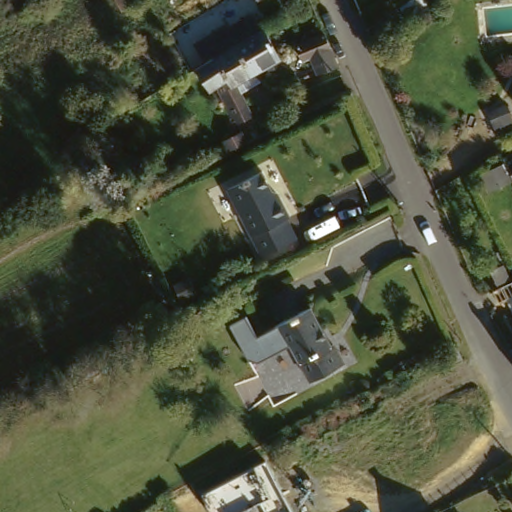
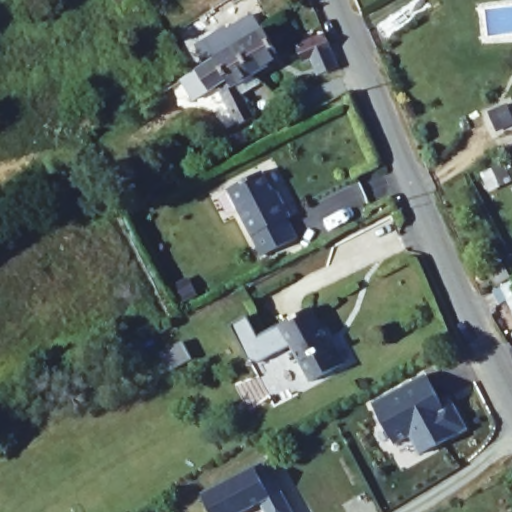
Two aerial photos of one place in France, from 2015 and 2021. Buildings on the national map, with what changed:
unchanged [(113,0),(153,0),(145,5),(144,2),(121,14),(113,0)]
unchanged [(266,78),(245,91),(257,115),(251,118),(243,123),(230,99),(222,86),(213,90),(202,66),(240,43),(231,27),(259,11),(268,27),(270,25),(281,46),(282,47),(286,56),(259,71),(266,77),(266,78)]
unchanged [(324,34),(325,35),(338,67),(316,76),(309,58),(301,61),(296,45),(324,34)]
unchanged [(504,105),(510,119),(494,126),(487,112),(504,105)]
unchanged [(261,137),(255,140),(251,134),(258,131),(261,137)]
unchanged [(294,239),(260,256),(229,187),(264,170),(294,239)]
unchanged [(512,298),(504,302),(498,291),(512,283),(512,298)]
unchanged [(336,343),(340,341),(349,359),(317,378),(297,342),(293,344),(281,324),(317,306),(336,343)]
unchanged [(261,362),(248,359),(229,324),(246,315),(257,336),(281,324),(293,344),(261,362)]
new [(440,402),(449,395),(467,430),(418,454),(409,436),(394,445),(372,403),(425,373),(440,402)]
unchanged [(290,512),(262,512),(259,506),(248,512),(208,512),(201,499),(263,464),(290,512)]

